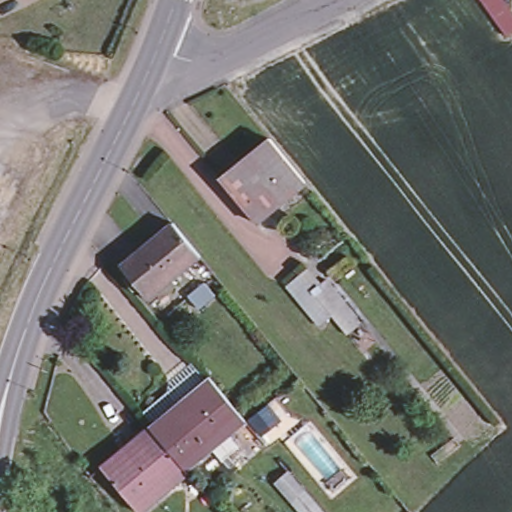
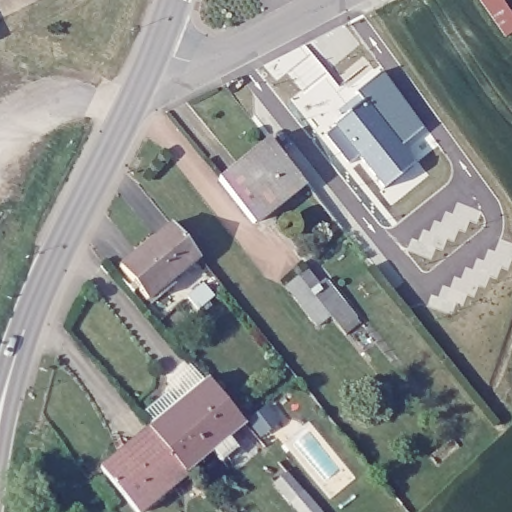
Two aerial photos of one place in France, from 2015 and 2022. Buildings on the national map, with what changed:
unchanged [(512,34),(506,38),(479,0),(501,0),(512,15),(512,34)]
new [(341,96),(377,75),(411,122),(390,140),(411,171),(385,190),(346,142),(361,127),(341,96)]
unchanged [(254,225),(218,181),(221,179),(223,181),(268,145),(266,142),(269,140),(304,183),(254,225)]
unchanged [(159,298),(155,293),(145,301),(137,290),(132,293),(128,288),(133,285),(120,267),(172,224),(200,257),(171,280),(175,285),(159,298)]
unchanged [(316,320),(285,283),(297,272),(307,265),(320,280),(326,275),(361,319),(346,331),(328,310),(316,320)]
unchanged [(198,310),(188,297),(204,285),(213,297),(198,310)]
unchanged [(212,445),(185,468),(148,423),(152,420),(142,408),(166,388),(193,365),(203,375),(207,372),(245,417),(228,431),(237,443),(221,456),(212,445)]
unchanged [(259,428),(250,416),(267,403),(276,415),(259,428)]
unchanged [(185,468),(186,470),(138,510),(101,463),(148,423),(185,468)]
unchanged [(333,493),(325,483),(346,466),(354,477),(333,493)]
unchanged [(291,503),(276,485),(287,475),(303,493),(305,492),(322,512),(299,512),(291,503)]

